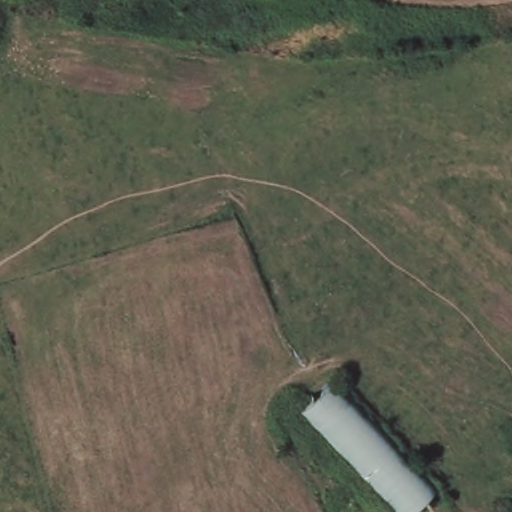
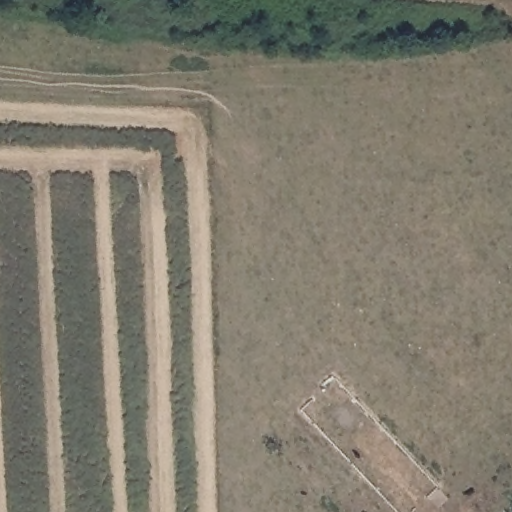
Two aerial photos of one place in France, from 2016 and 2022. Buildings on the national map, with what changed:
demolished [(337,376),(438,487),(412,512),(393,512),(297,413),(337,376)]

